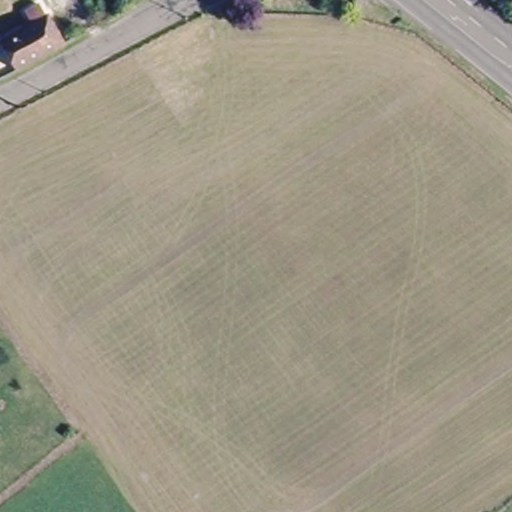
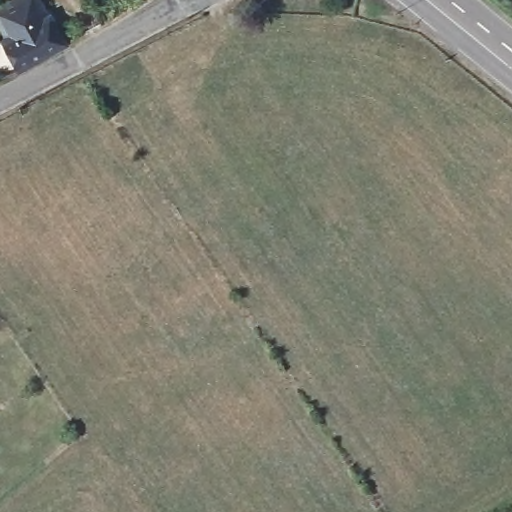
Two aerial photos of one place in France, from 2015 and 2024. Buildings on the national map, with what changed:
unchanged [(0,44),(25,31),(20,22),(41,13),(62,51),(13,76),(0,53),(0,44)]

